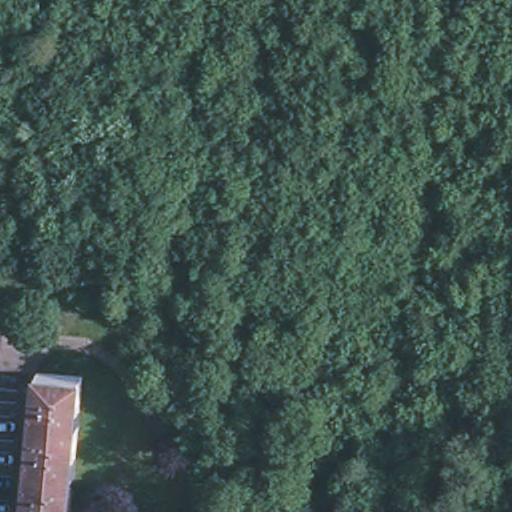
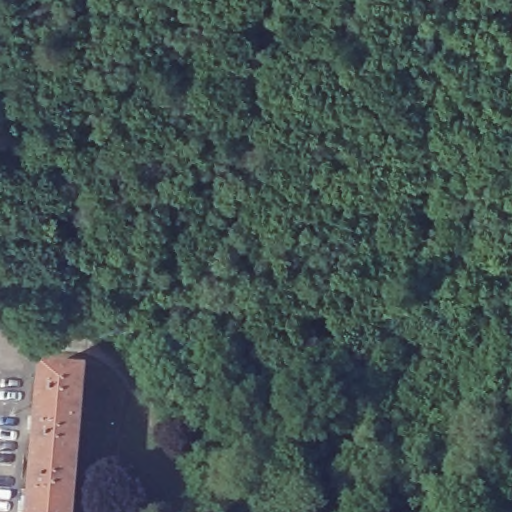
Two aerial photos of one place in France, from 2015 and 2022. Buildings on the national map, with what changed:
unchanged [(23,503),(25,482),(18,482),(19,469),(20,457),(27,458),(29,437),(30,425),(34,376),(77,379),(70,475),(67,512),(15,512),(16,503),(23,503)]

